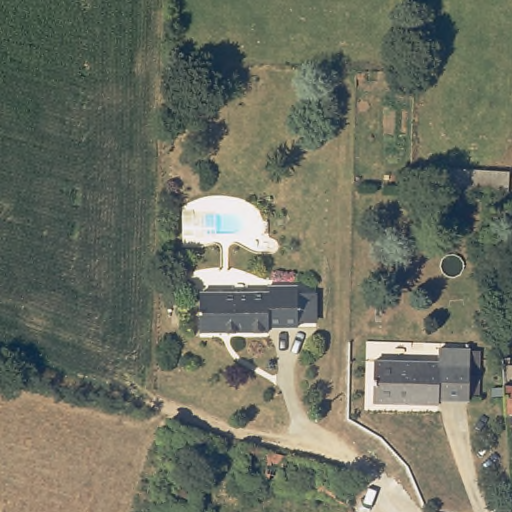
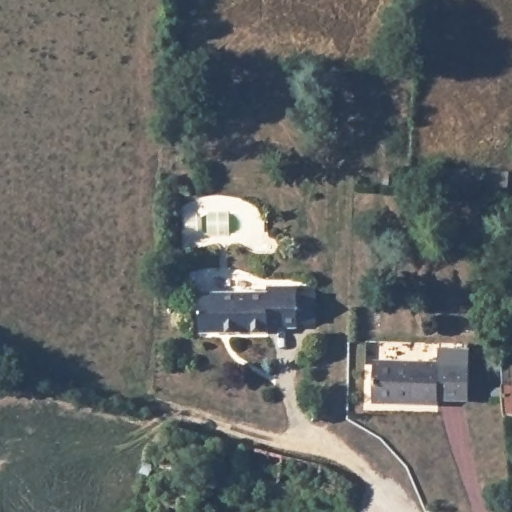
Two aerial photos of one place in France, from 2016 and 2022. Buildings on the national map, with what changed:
unchanged [(271,293),(272,285),(295,288),(296,325),(268,327),(267,334),(197,329),(199,290),(271,293)]
unchanged [(442,364),(442,350),(470,352),(468,400),(440,398),(441,407),(376,402),(375,362),(442,364)]
unchanged [(505,360),(512,360),(512,421),(508,421),(505,360)]
unchanged [(157,500),(160,454),(169,427),(216,439),(209,463),(195,461),(192,486),(200,488),(197,512),(159,512),(157,500)]
unchanged [(312,494),(238,475),(246,447),(328,469),(353,486),(348,507),(312,494)]

